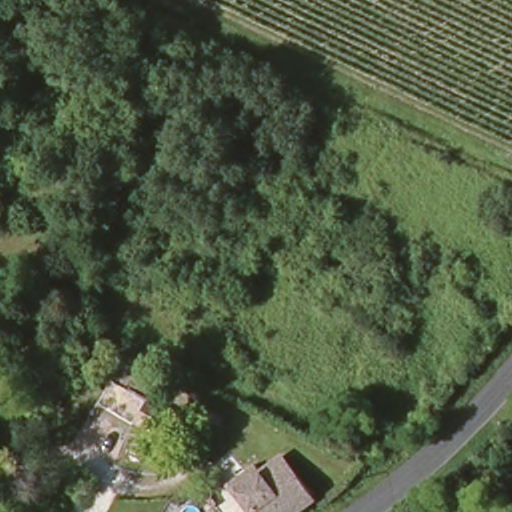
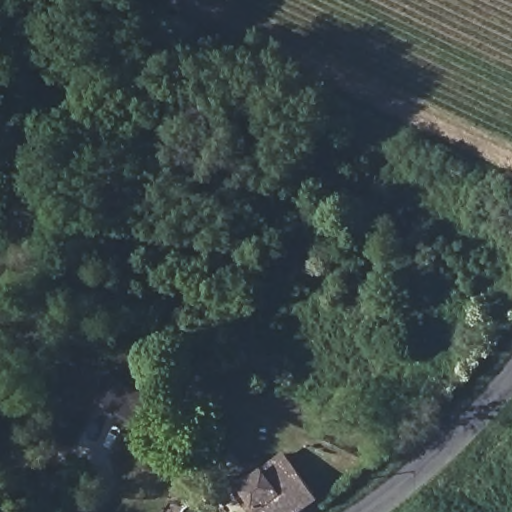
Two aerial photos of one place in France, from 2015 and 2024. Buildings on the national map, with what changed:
unchanged [(322,503),(306,512),(253,512),(235,484),(270,463),(276,471),(295,460),(322,503)]

